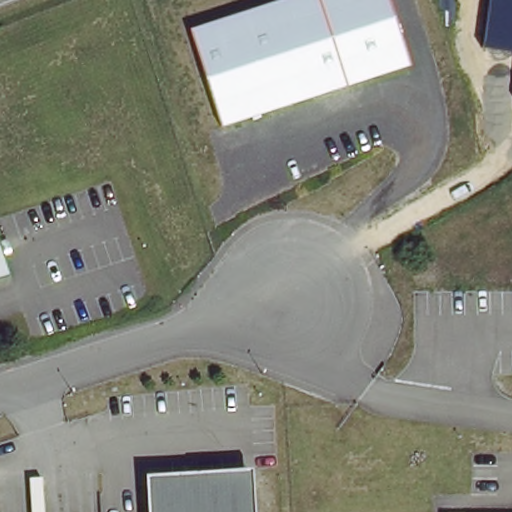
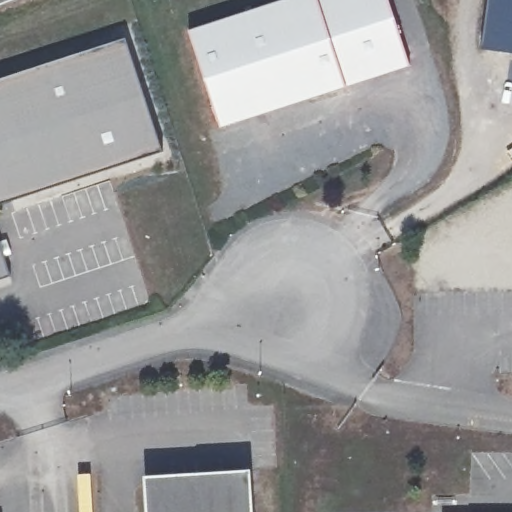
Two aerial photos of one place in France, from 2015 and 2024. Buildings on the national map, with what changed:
unchanged [(280,0),(388,0),(410,66),(220,128),(188,30),(280,0)]
unchanged [(482,48),(488,0),(512,0),(512,52),(482,48)]
new [(0,80),(125,39),(161,151),(0,202),(0,80)]
unchanged [(10,259),(2,261),(8,281),(0,283),(0,245),(4,243),(10,259)]
unchanged [(145,512),(143,481),(246,473),(248,512),(145,512)]

